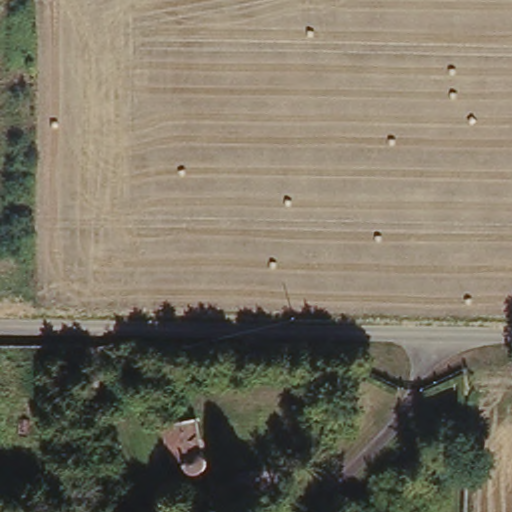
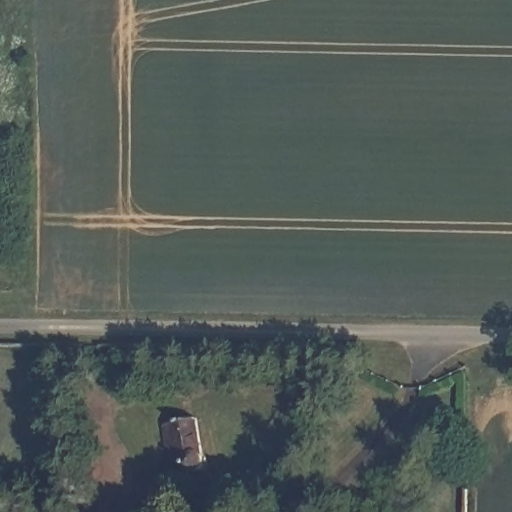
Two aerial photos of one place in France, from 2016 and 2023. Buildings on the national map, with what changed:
unchanged [(171,442),(163,442),(164,419),(199,419),(198,446),(207,447),(207,466),(182,466),(182,458),(171,457),(171,442)]

